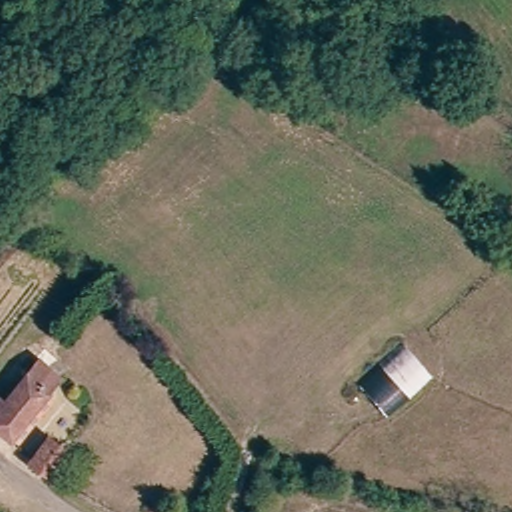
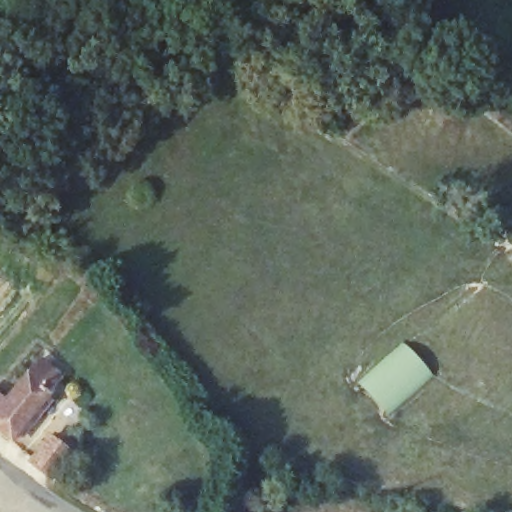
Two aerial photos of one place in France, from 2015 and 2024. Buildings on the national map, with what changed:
unchanged [(435,374),(387,414),(362,382),(408,344),(435,374)]
unchanged [(0,431),(0,394),(10,402),(43,362),(64,379),(14,443),(0,431)]
unchanged [(80,450),(60,477),(41,459),(59,435),(80,450)]

